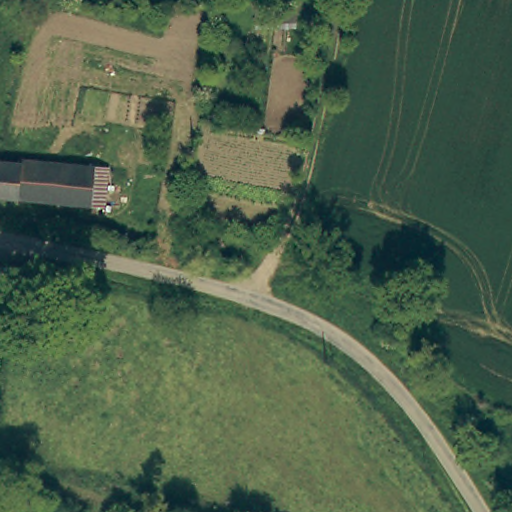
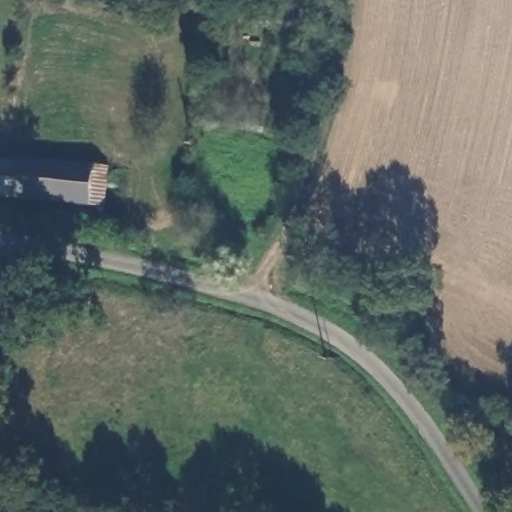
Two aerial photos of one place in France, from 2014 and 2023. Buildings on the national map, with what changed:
unchanged [(91,204),(0,196),(0,161),(1,161),(1,155),(95,164),(111,165),(107,204),(91,204)]
unchanged [(5,272),(7,292),(0,293),(0,268),(4,268),(5,272)]

